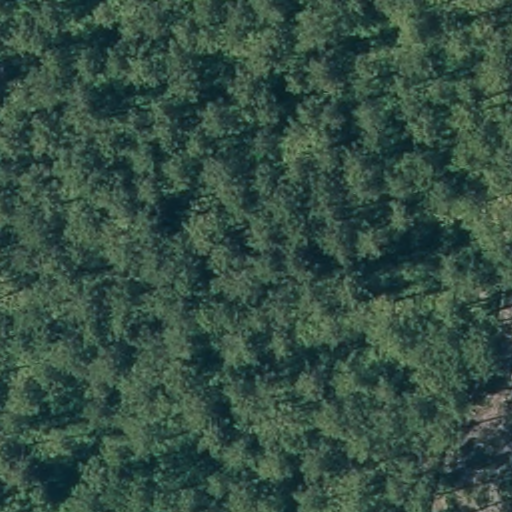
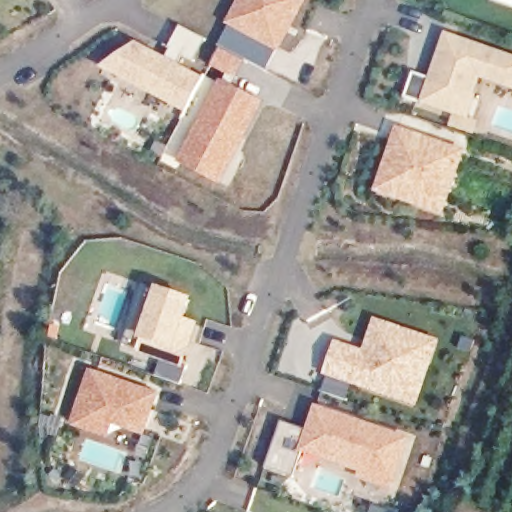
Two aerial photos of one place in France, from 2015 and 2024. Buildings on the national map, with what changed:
new [(240,0),(306,0),(279,51),(227,24),(240,0)]
new [(179,62),(204,76),(185,111),(102,68),(137,40),(167,56),(172,46),(169,44),(180,25),(206,39),(195,59),(183,54),(179,62)]
new [(414,70),(428,76),(444,30),(512,53),(512,85),(480,76),(467,117),(421,100),(406,95),(414,70)]
new [(178,161),(220,79),(262,100),(220,182),(178,161)]
new [(396,124),(464,148),(443,212),(374,189),(396,124)]
new [(156,288),(157,284),(194,298),(187,315),(199,322),(181,379),(156,371),(161,359),(124,344),(145,285),(156,288)]
new [(323,373),(334,340),(363,348),(373,316),(438,338),(415,403),(323,373)]
new [(71,423),(90,369),(158,391),(146,434),(129,427),(113,422),(108,437),(71,423)]
new [(294,475),(266,467),(282,419),(307,428),(314,404),(410,437),(393,489),(357,477),(359,469),(301,451),(294,475)]

